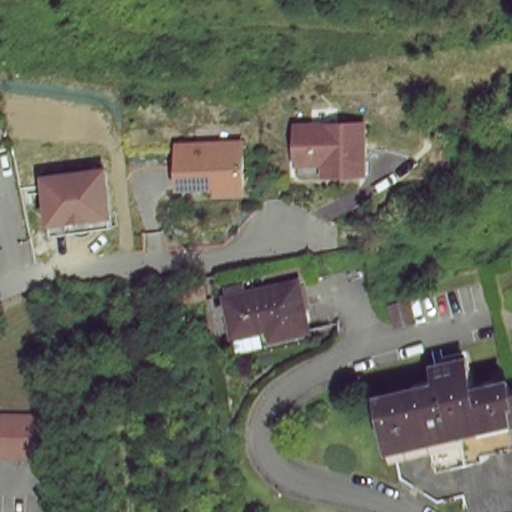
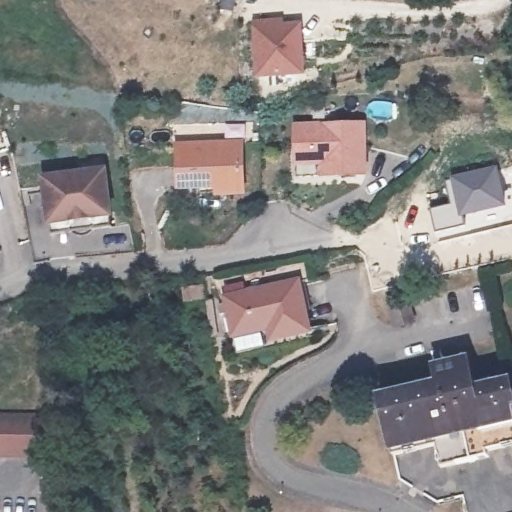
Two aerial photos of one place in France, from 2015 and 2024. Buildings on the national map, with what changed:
new [(283,23),(300,21),(305,76),(257,79),(252,26),(252,21),(283,18),(283,23)]
unchanged [(297,143),(296,120),(365,118),(367,169),(338,169),(298,171),(297,143)]
unchanged [(217,192),(217,185),(178,187),(177,144),(242,141),(243,184),(243,191),(217,192)]
unchanged [(50,230),(48,216),(53,216),(50,189),(45,190),(42,173),(102,164),(108,209),(110,222),(50,230)]
new [(435,234),(429,209),(455,203),(450,175),(497,165),(507,207),(462,217),(465,227),(435,234)]
unchanged [(186,299),(185,289),(205,286),(205,296),(186,299)]
unchanged [(310,339),(273,349),(269,336),(235,343),(227,305),(299,291),(310,339)]
unchanged [(413,323),(396,327),(391,309),(408,303),(413,323)]
unchanged [(437,453),(396,462),(384,410),(442,396),(440,382),(471,375),(478,405),(512,398),(512,457),(490,463),(492,471),(460,479),(447,483),(442,471),(437,453)]
unchanged [(40,460),(0,459),(0,412),(42,412),(40,460)]

